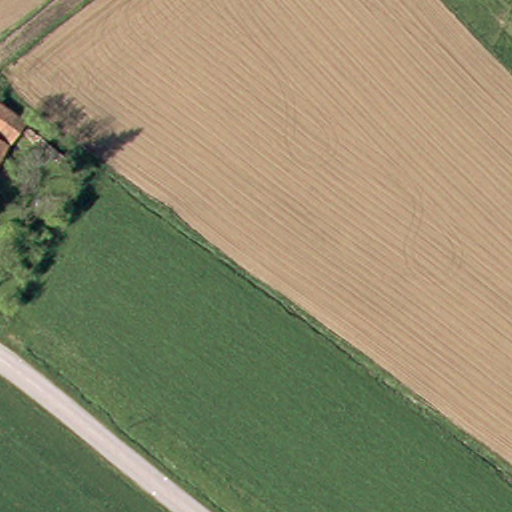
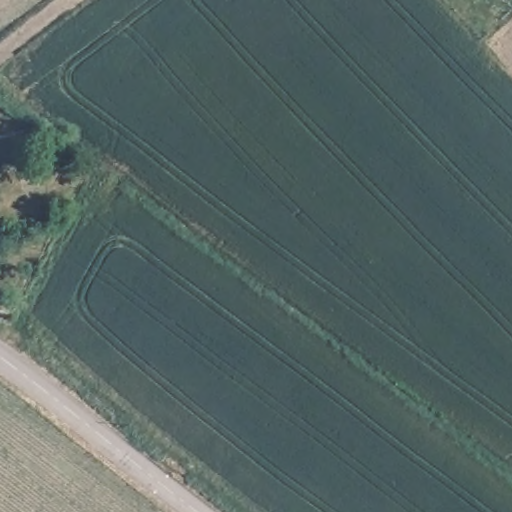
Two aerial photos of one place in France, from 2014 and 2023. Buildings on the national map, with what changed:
unchanged [(0,133),(3,135),(0,142),(0,133)]

